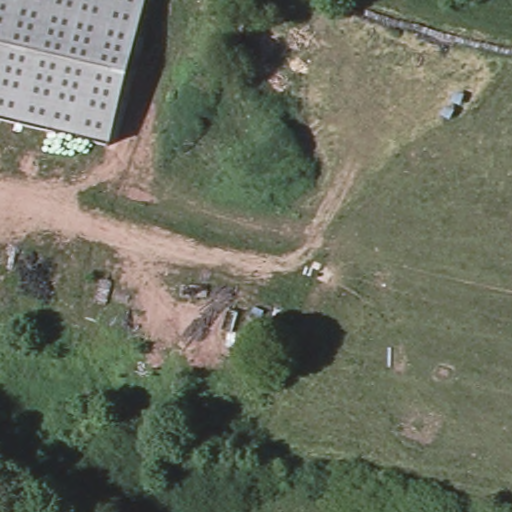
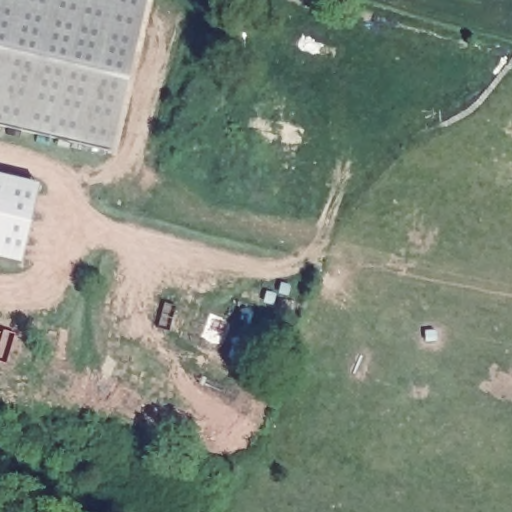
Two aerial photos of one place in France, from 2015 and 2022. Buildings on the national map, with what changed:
unchanged [(128,63),(109,132),(104,154),(0,127),(0,0),(145,0),(128,63)]
new [(0,261),(0,177),(39,186),(20,265),(0,261)]

